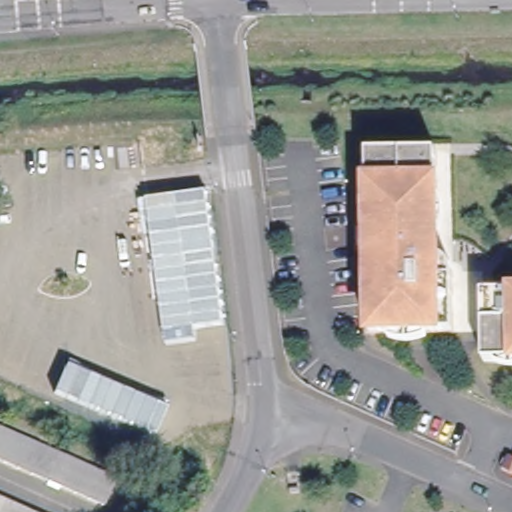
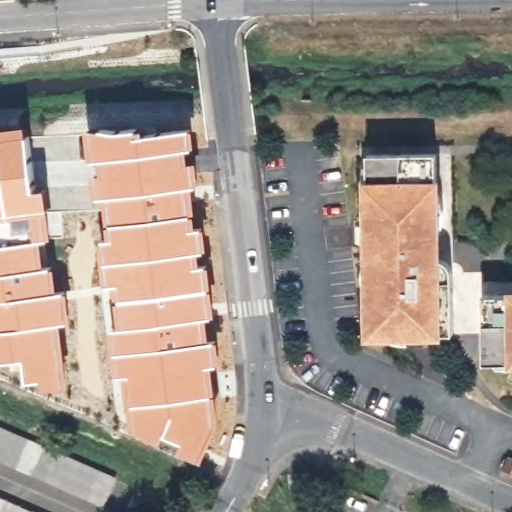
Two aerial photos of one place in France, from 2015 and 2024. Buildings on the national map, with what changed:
new [(30,136),(86,132),(86,129),(147,128),(147,131),(194,128),(196,149),(199,160),(202,186),(197,186),(200,226),(206,225),(209,255),(205,255),(206,261),(211,260),(217,317),(215,318),(221,368),(218,369),(220,421),(205,462),(140,434),(128,425),(119,419),(118,412),(120,412),(117,394),(105,305),(99,237),(106,236),(101,211),(62,213),(64,238),(45,240),(49,264),(56,263),(60,289),(69,289),(71,321),(64,322),(68,385),(41,388),(41,380),(27,381),(25,360),(0,361),(0,127),(29,124),(30,136)]
unchanged [(457,327),(376,331),(367,151),(435,147),(440,266),(454,266),(457,327)]
unchanged [(486,362),(482,292),(512,291),(512,361),(486,362)]
demolished [(492,426),(498,412),(512,418),(512,434),(492,426)]
unchanged [(0,457),(0,425),(112,475),(101,502),(0,457)]
unchanged [(508,467),(512,458),(512,468),(508,467)]
unchanged [(0,512),(0,495),(39,512),(0,512)]

